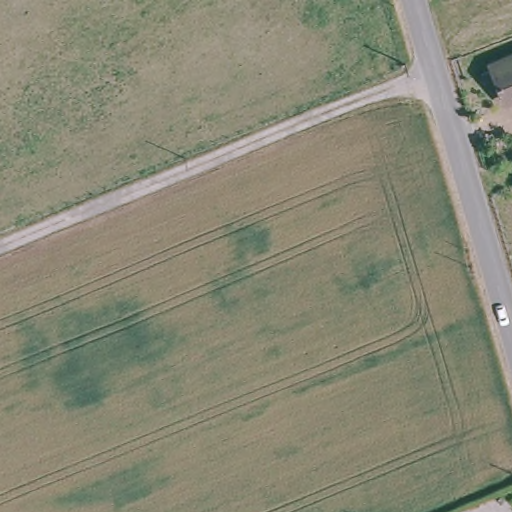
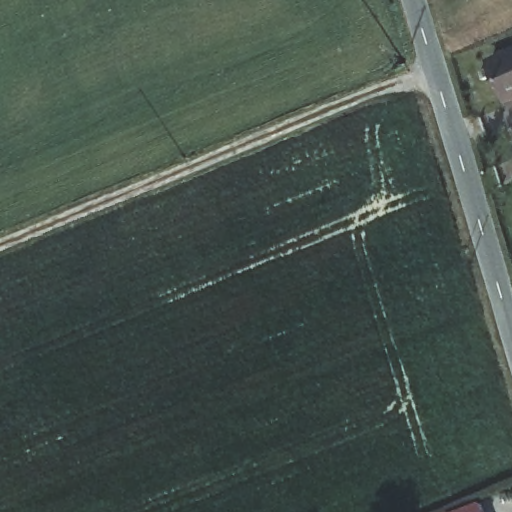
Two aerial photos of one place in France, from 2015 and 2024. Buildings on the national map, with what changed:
unchanged [(512,53),(512,92),(505,95),(497,74),(483,79),(480,70),(495,65),(493,60),(512,53)]
unchanged [(466,75),(456,80),(450,62),(460,59),(460,58),(464,70),(466,75)]

